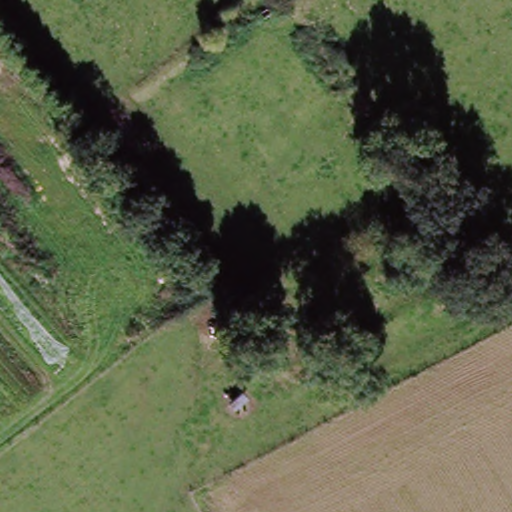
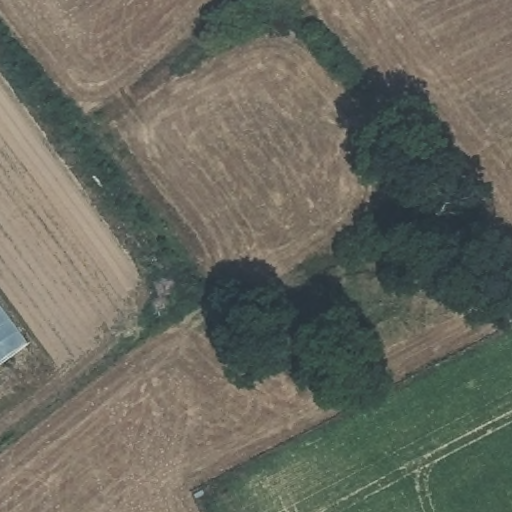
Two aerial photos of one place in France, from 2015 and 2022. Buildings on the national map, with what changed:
new [(0,358),(0,311),(22,341),(0,358)]

